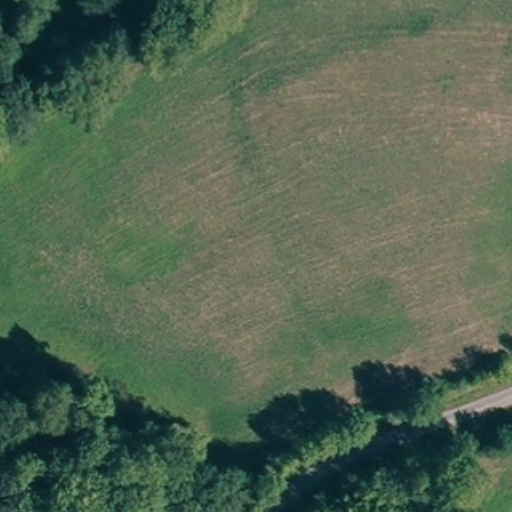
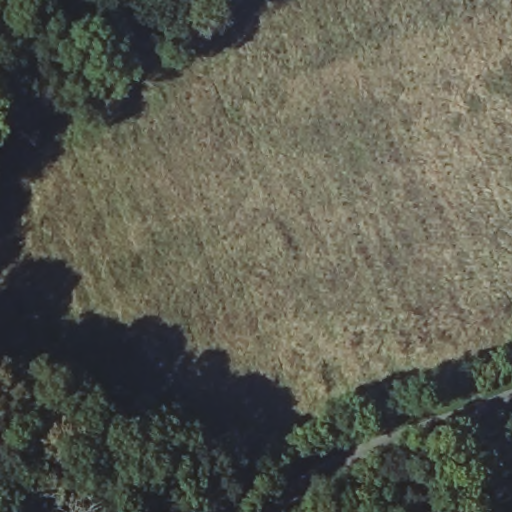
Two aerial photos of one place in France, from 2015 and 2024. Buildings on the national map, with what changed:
[]

